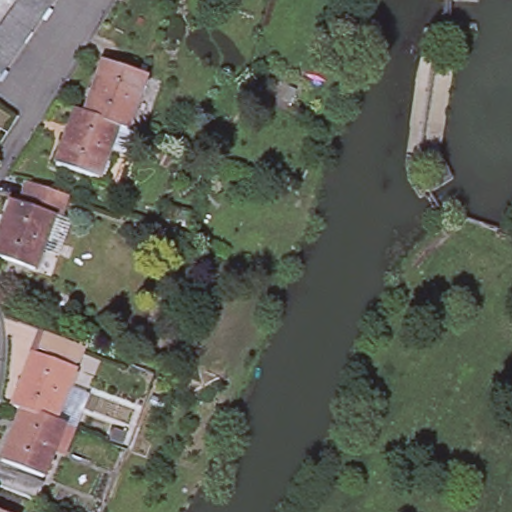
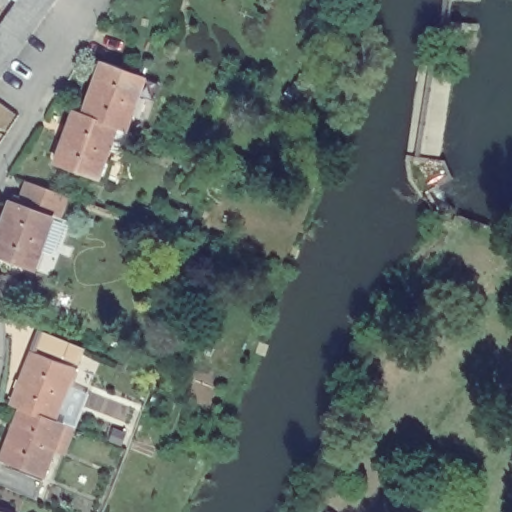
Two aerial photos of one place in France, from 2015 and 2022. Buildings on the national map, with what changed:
unchanged [(2,28),(5,24),(15,11),(22,0),(60,0),(56,5),(47,17),(38,30),(29,42),(20,54),(11,66),(2,78),(0,81),(0,31),(2,28)]
unchanged [(110,54),(152,69),(133,122),(123,118),(90,107),(110,54)]
unchanged [(80,104),(90,107),(123,118),(103,172),(61,157),(80,104)]
unchanged [(16,192),(27,172),(74,186),(63,204),(40,270),(0,251),(0,238),(16,192)]
unchanged [(46,328),(86,342),(77,368),(36,353),(46,328)]
unchanged [(25,410),(16,406),(36,353),(77,368),(56,422),(25,410)]
unchanged [(46,479),(5,463),(25,410),(56,422),(67,427),(46,479)]
unchanged [(12,512),(0,512),(0,507),(12,512)]

